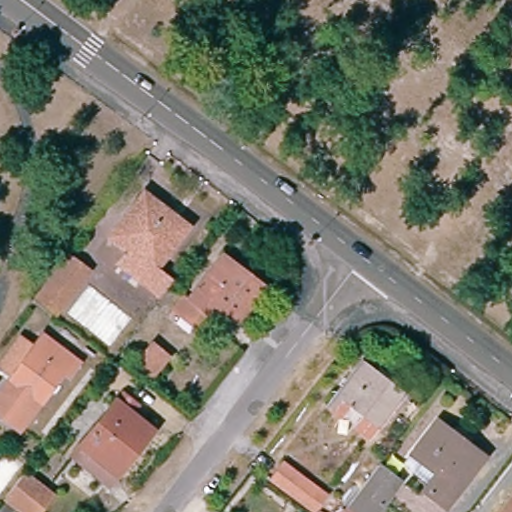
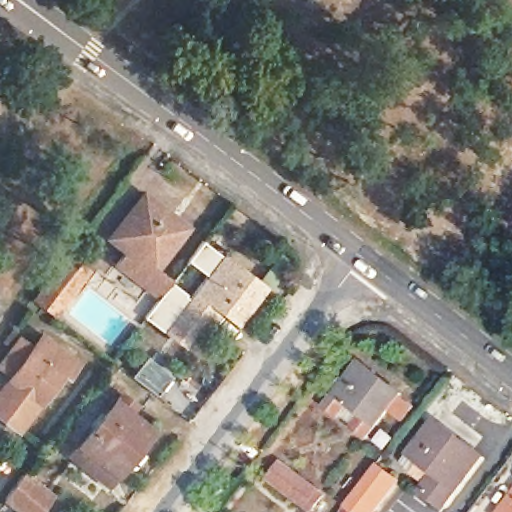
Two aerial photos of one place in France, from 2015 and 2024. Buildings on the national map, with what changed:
unchanged [(135,278),(106,255),(118,240),(109,233),(139,193),(178,222),(135,278)]
unchanged [(83,270),(48,314),(31,301),(65,256),(83,270)]
unchanged [(256,288),(231,322),(209,305),(193,327),(169,309),(180,295),(186,300),(217,258),(256,288)]
unchanged [(66,377),(61,373),(18,427),(0,412),(0,391),(42,337),(77,364),(66,377)]
unchanged [(153,382),(130,365),(152,340),(171,355),(153,382)]
unchanged [(328,396),(361,354),(373,363),(364,375),(380,388),(390,376),(402,386),(369,427),(328,396)]
unchanged [(128,409),(123,415),(145,432),(101,488),(67,462),(116,399),(128,409)]
unchanged [(479,456),(454,489),(409,454),(434,422),(479,456)]
unchanged [(284,464),(304,480),(302,482),(314,491),(304,504),(272,479),(284,464)]
unchanged [(43,493),(29,512),(16,512),(0,499),(19,474),(43,493)]
unchanged [(369,512),(340,512),(368,477),(386,490),(369,512)]
unchanged [(503,512),(512,500),(512,512),(503,512)]

